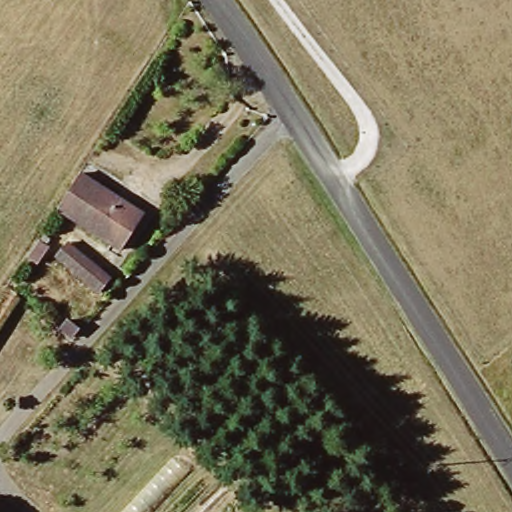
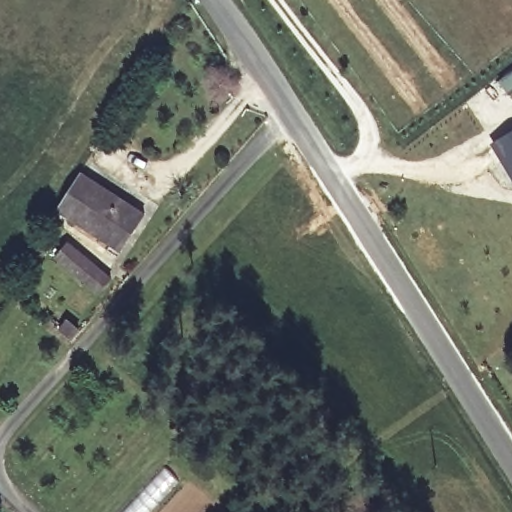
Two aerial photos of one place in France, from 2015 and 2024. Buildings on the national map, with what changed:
new [(491,143),(512,131),(512,177),(491,143)]
unchanged [(85,171),(141,220),(115,250),(58,203),(85,171)]
unchanged [(41,239),(47,244),(42,251),(36,246),(41,239)]
unchanged [(65,245),(105,279),(94,294),(52,260),(65,245)]
unchanged [(80,329),(70,340),(56,330),(67,316),(80,329)]

